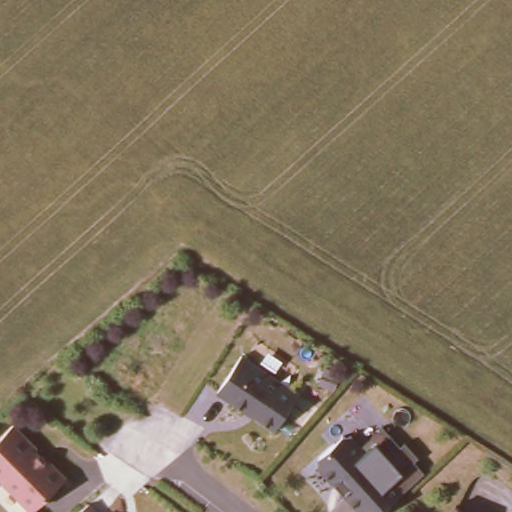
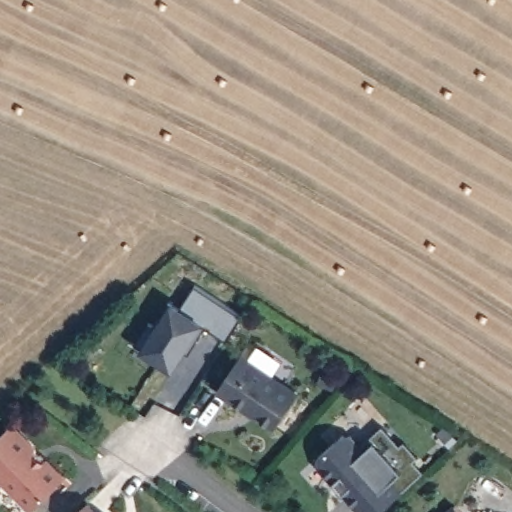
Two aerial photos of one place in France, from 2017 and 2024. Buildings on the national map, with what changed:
new [(172,370),(136,345),(150,323),(154,326),(170,303),(180,310),(196,286),(244,317),(227,342),(207,328),(195,346),(189,355),(185,352),(191,343),(172,370)]
unchanged [(277,426),(220,390),(242,354),(302,394),(277,426)]
unchanged [(0,474),(0,440),(21,422),(68,475),(32,507),(0,474)]
unchanged [(363,512),(317,459),(349,429),(405,489),(368,512),(363,512)]
unchanged [(103,512),(79,512),(90,502),(103,512)]
unchanged [(450,512),(457,506),(462,512),(450,512)]

